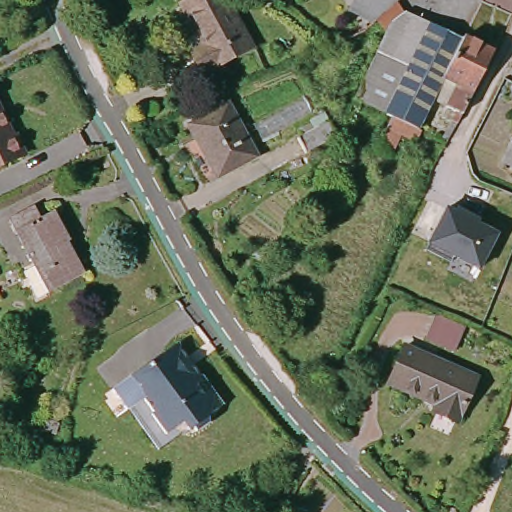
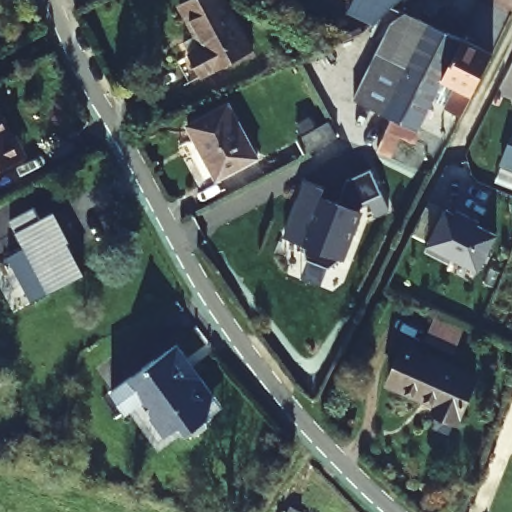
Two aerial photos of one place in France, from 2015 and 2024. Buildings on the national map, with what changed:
unchanged [(177,4),(185,0),(226,0),(252,48),(202,75),(190,53),(184,41),(195,35),(177,4)]
unchanged [(376,14),(350,2),(351,0),(393,0),(383,7),(376,14)]
unchanged [(376,14),(383,7),(393,0),(397,0),(407,7),(464,34),(435,97),(432,96),(412,137),(399,131),(390,152),(385,149),(377,146),(392,113),(354,96),(385,31),(372,17),(376,14)]
unchanged [(464,34),(493,47),(490,52),(489,55),(469,94),(460,111),(457,117),(451,115),(455,107),(435,97),(464,34)]
unchanged [(257,156),(217,178),(189,125),(229,103),(257,156)]
unchanged [(27,150),(21,152),(0,162),(0,108),(1,110),(12,134),(17,131),(27,150)]
unchanged [(305,153),(297,139),(329,122),(337,136),(305,153)]
unchanged [(504,160),(511,140),(512,140),(512,167),(502,164),(504,160)]
new [(305,243),(284,237),(306,179),(342,189),(345,180),(372,170),(390,210),(376,216),(372,207),(364,210),(345,261),(340,258),(332,267),(307,257),(305,243)]
unchanged [(49,292),(10,219),(35,206),(42,219),(55,212),(69,240),(67,242),(84,275),(49,292)]
unchanged [(481,272),(432,249),(450,207),(502,234),(481,272)]
new [(465,321),(454,351),(427,341),(438,310),(465,321)]
demolished [(452,321),(479,332),(474,345),(447,333),(452,321)]
unchanged [(220,401),(205,412),(205,416),(192,426),(189,423),(184,427),(177,417),(161,430),(147,411),(150,408),(138,393),(121,406),(107,386),(172,337),(197,372),(209,387),(220,401)]
unchanged [(477,378),(458,423),(434,413),(437,405),(389,384),(405,347),(477,378)]
unchanged [(304,512),(303,512),(289,512),(292,506),(304,512)]

